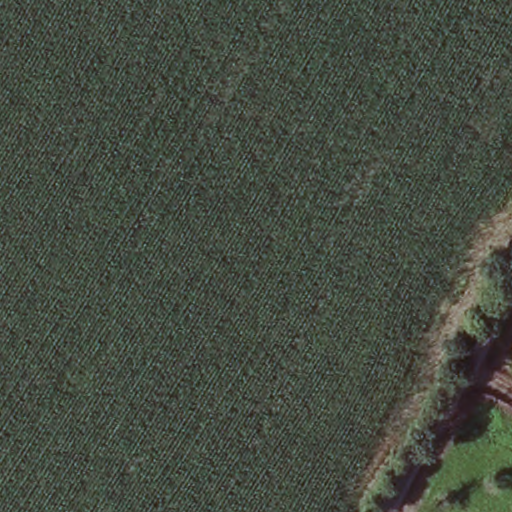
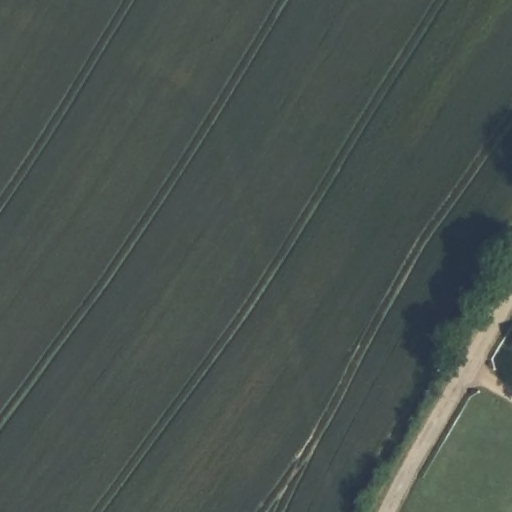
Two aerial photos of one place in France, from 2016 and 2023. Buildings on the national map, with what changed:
unchanged [(512,344),(512,346),(511,345),(512,344)]

